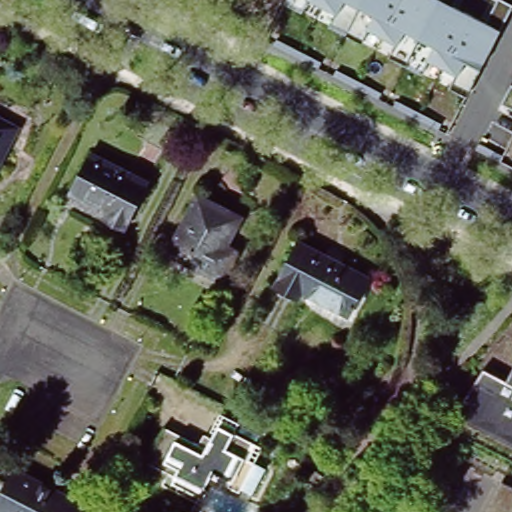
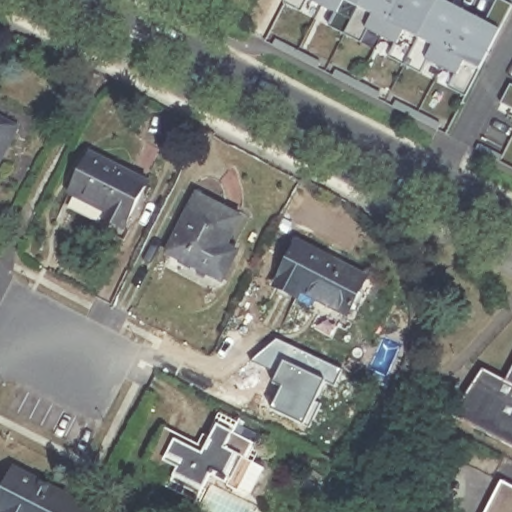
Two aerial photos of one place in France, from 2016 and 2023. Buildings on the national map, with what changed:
unchanged [(286,0),(287,0),(308,0),(302,7),(286,0)]
unchanged [(484,21),(496,0),(502,0),(512,5),(512,6),(501,29),(480,67),(466,92),(453,85),(457,74),(429,59),(422,71),(391,55),(397,44),(367,28),(362,38),(332,24),(337,14),(310,0),(456,0),(454,5),(484,21)]
unchanged [(502,104),(512,85),(512,109),(502,104)]
unchanged [(0,159),(0,120),(15,128),(0,159)]
unchanged [(92,154),(149,183),(141,198),(146,200),(125,240),(100,226),(102,224),(65,205),(92,154)]
unchanged [(199,197),(241,218),(227,246),(241,253),(226,283),(170,254),(199,197)]
unchanged [(305,293),(301,299),(279,288),(282,282),(281,281),(300,243),(370,279),(350,316),(305,293)]
new [(278,338),(345,370),(336,386),(327,381),(317,401),(323,404),(311,428),(272,409),(282,387),(273,383),(278,374),(251,360),(278,338)]
unchanged [(449,416),(481,369),(502,381),(512,364),(512,448),(449,416)]
unchanged [(202,450),(218,421),(234,429),(231,435),(253,447),(246,462),(268,474),(254,500),(208,476),(195,502),(180,494),(179,496),(160,486),(165,474),(144,463),(161,429),(202,450)]
unchanged [(92,512),(0,512),(0,503),(17,469),(94,509),(92,512)]
unchanged [(503,483),(512,487),(512,512),(488,512),(503,483)]

